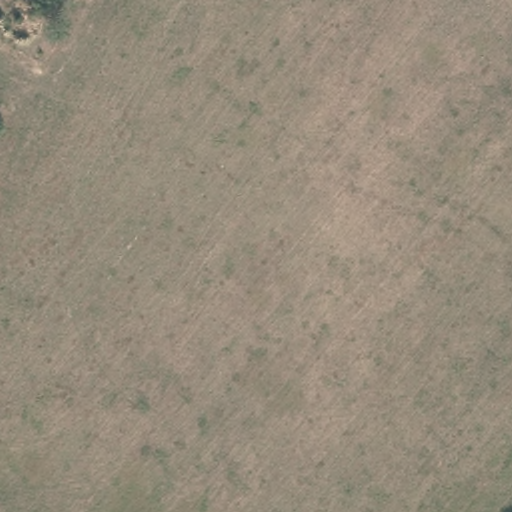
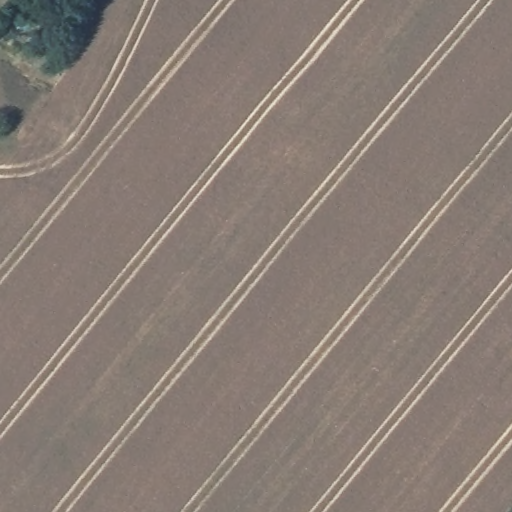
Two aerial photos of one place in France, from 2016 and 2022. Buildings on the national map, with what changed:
[]

